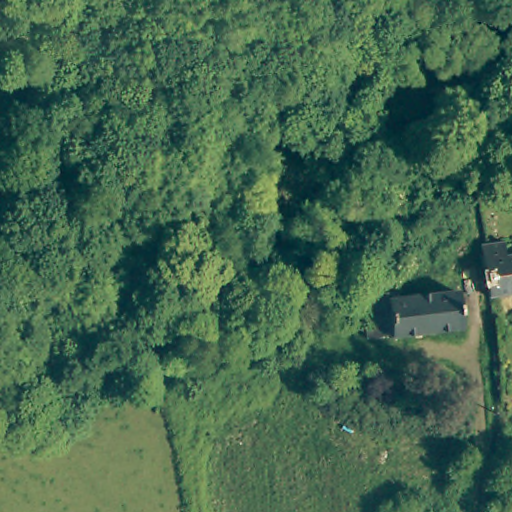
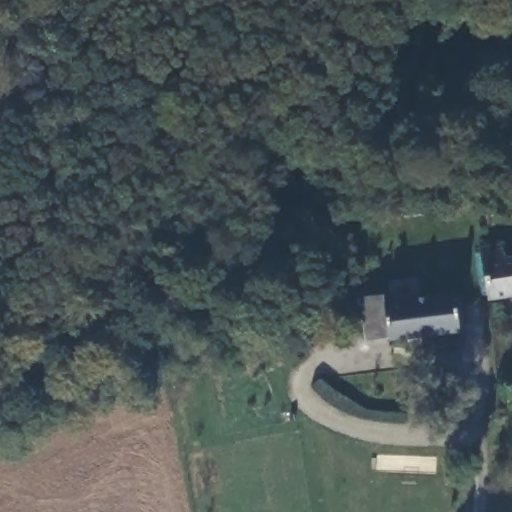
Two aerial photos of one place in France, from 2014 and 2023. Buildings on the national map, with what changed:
unchanged [(484,261),(483,244),(508,242),(510,256),(512,255),(512,297),(490,300),(484,261)]
unchanged [(465,298),(465,333),(431,334),(430,299),(465,298)]
unchanged [(396,300),(430,299),(431,334),(396,336),(396,300)]

